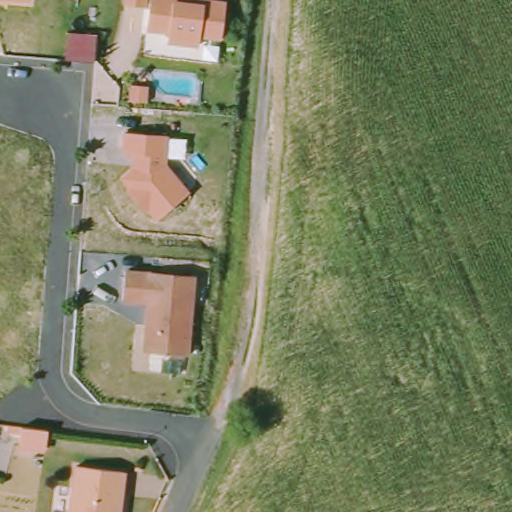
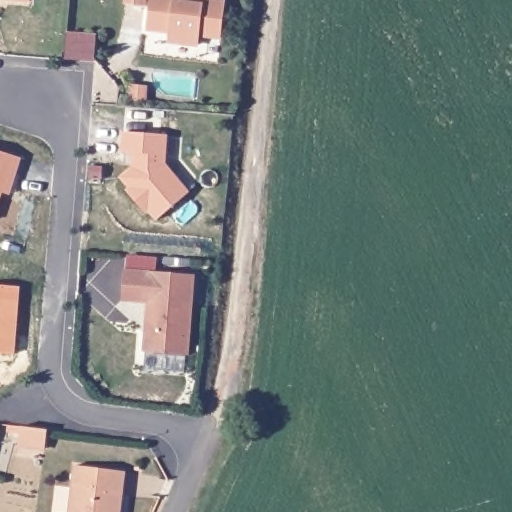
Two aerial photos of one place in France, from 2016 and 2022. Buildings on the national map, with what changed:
unchanged [(29,0),(29,2),(0,0),(29,0)]
unchanged [(131,0),(151,0),(151,7),(131,6),(131,0)]
unchanged [(216,0),(231,2),(227,36),(206,34),(205,44),(174,41),(175,31),(153,29),(155,0),(216,0)]
unchanged [(65,32),(95,33),(93,64),(63,62),(65,32)]
unchanged [(129,168),(131,155),(119,152),(121,132),(166,134),(164,167),(187,194),(154,220),(146,210),(142,213),(125,191),(127,189),(119,177),(129,168)]
new [(22,159),(10,194),(3,192),(0,200),(0,152),(22,159)]
unchanged [(145,306),(120,303),(123,270),(194,275),(189,354),(142,353),(145,306)]
new [(20,287),(15,354),(0,353),(0,286),(20,287)]
unchanged [(44,447),(18,443),(18,427),(44,430),(44,447)]
unchanged [(71,465),(122,474),(117,497),(114,512),(60,512),(71,465)]

